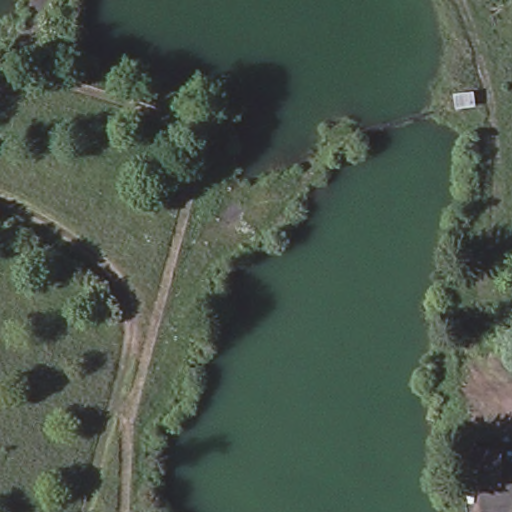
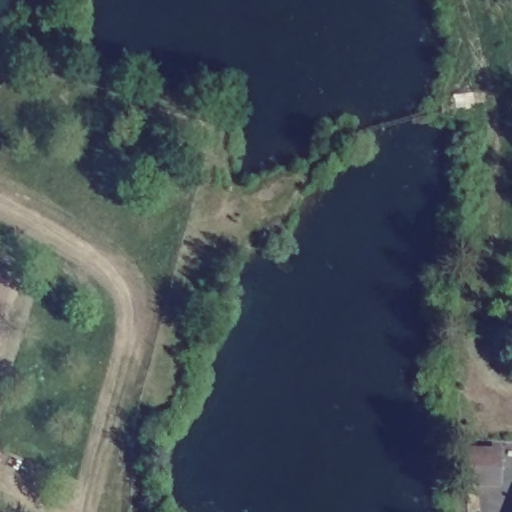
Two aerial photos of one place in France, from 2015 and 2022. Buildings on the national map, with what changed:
unchanged [(505,451),(504,490),(466,490),(466,451),(505,451)]

